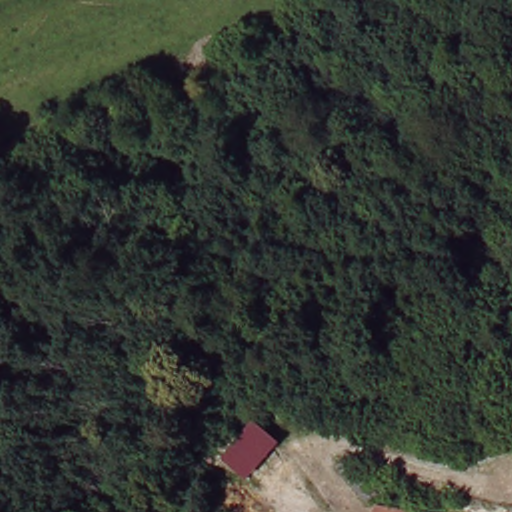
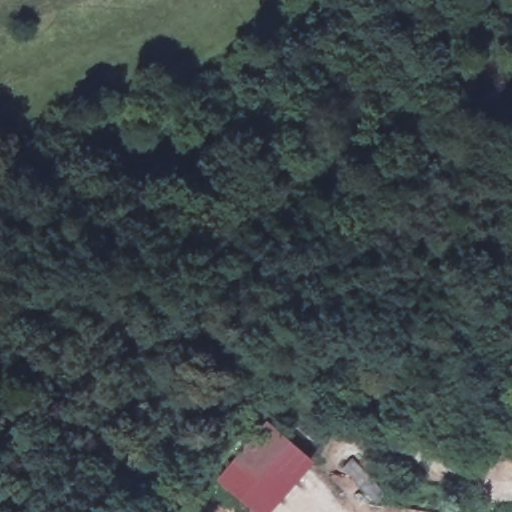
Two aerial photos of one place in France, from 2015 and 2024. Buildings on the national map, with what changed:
new [(265,512),(250,512),(214,480),(264,421),(311,462),(265,512)]
new [(380,506),(340,471),(351,459),(399,504),(414,506),(412,512),(379,512),(380,506)]
unchanged [(415,501),(476,512),(412,512),(415,501)]

